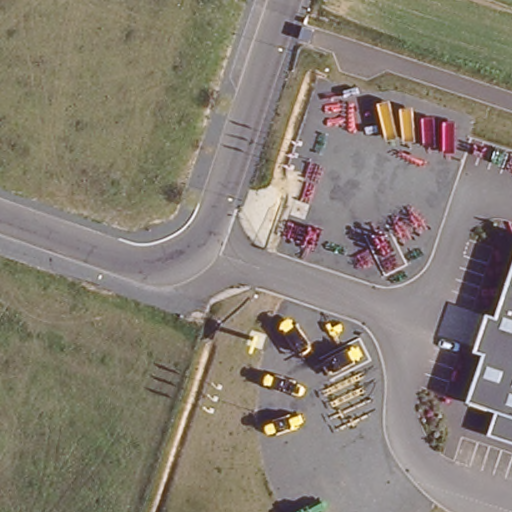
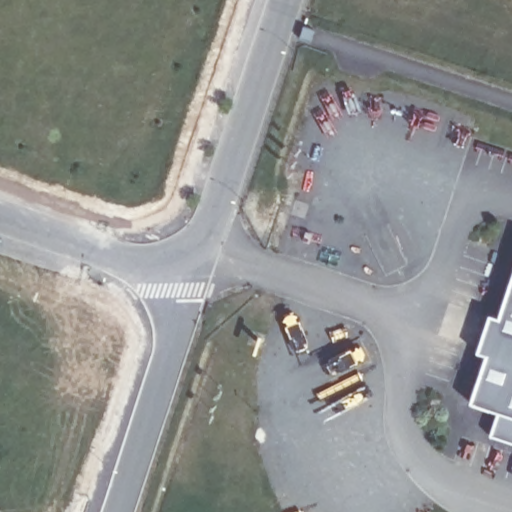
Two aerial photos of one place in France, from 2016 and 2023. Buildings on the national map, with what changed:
unchanged [(498,411),(470,400),(484,355),(476,351),(487,313),(498,317),(512,272),(512,441),(491,434),(498,411)]

